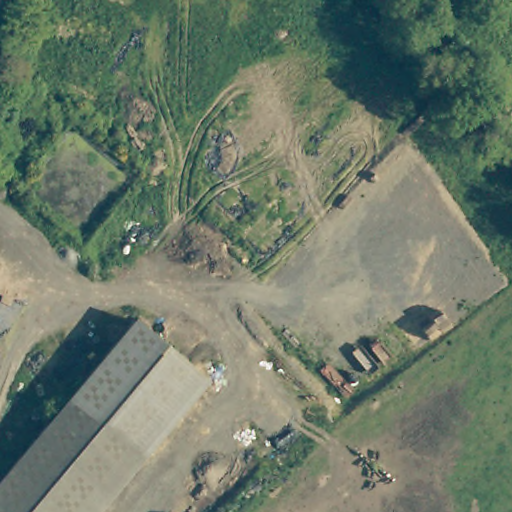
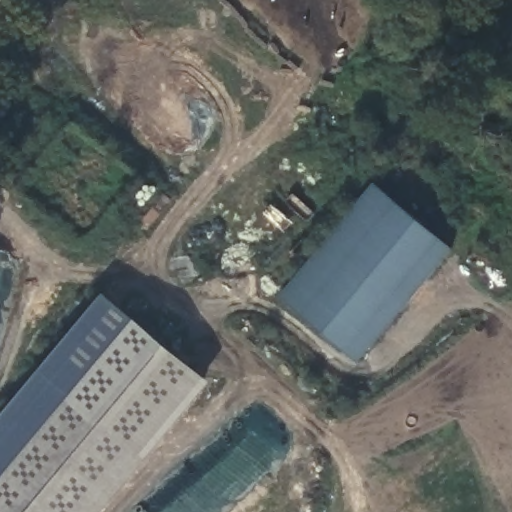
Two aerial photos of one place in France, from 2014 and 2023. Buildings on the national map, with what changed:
new [(453,248),(359,361),(279,296),(374,182),(453,248)]
unchanged [(204,375),(86,512),(0,512),(0,417),(107,293),(204,375)]

